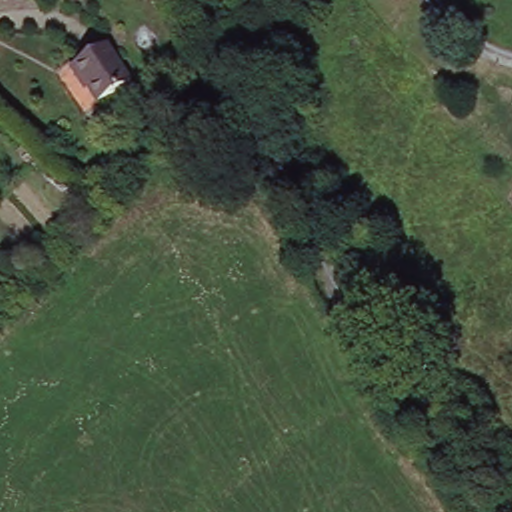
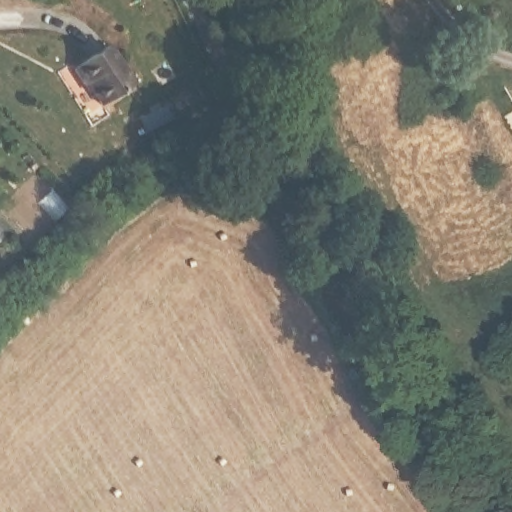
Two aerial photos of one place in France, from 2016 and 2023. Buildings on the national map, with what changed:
unchanged [(138,80),(104,100),(94,85),(91,87),(76,64),(113,41),(138,80)]

